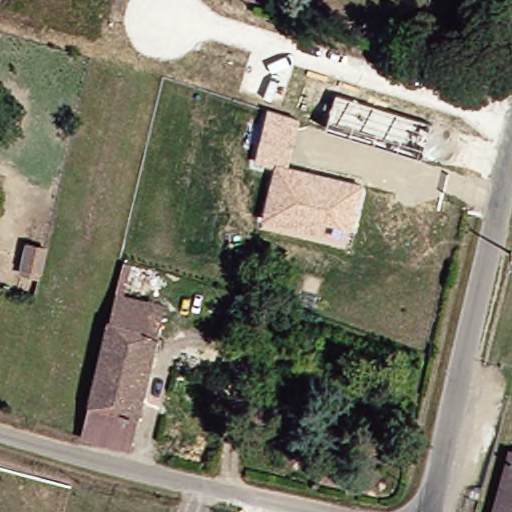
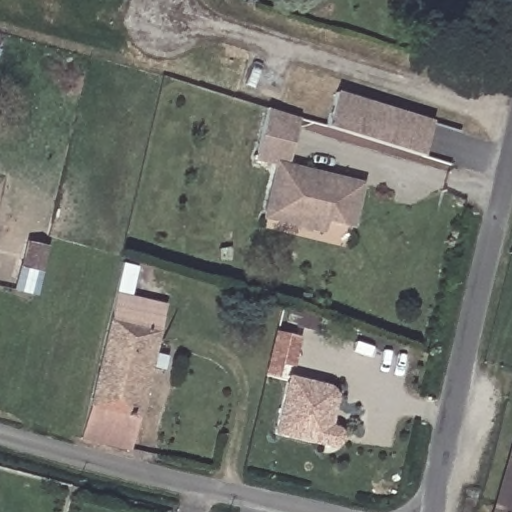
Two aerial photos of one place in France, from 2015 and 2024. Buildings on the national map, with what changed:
new [(432,121),(421,155),(325,126),(337,92),(432,121)]
unchanged [(275,165),(254,160),(267,107),(300,115),(290,164),(364,182),(353,229),(344,226),(341,239),(324,234),(262,218),(275,165)]
unchanged [(29,277),(12,273),(18,243),(36,246),(29,277)]
unchanged [(122,260),(147,265),(140,298),(164,304),(129,449),(80,437),(115,292),(122,260)]
new [(271,332),(293,337),(286,368),(275,364),(271,379),(260,376),(271,332)]
new [(282,377),(322,387),(325,388),(328,391),(331,396),(331,403),(325,426),(329,427),(333,429),(337,433),(337,437),(337,441),(333,446),(328,448),(322,446),(268,434),(281,384),(282,377)]
unchanged [(502,462),(505,449),(512,450),(512,512),(490,512),(502,462)]

